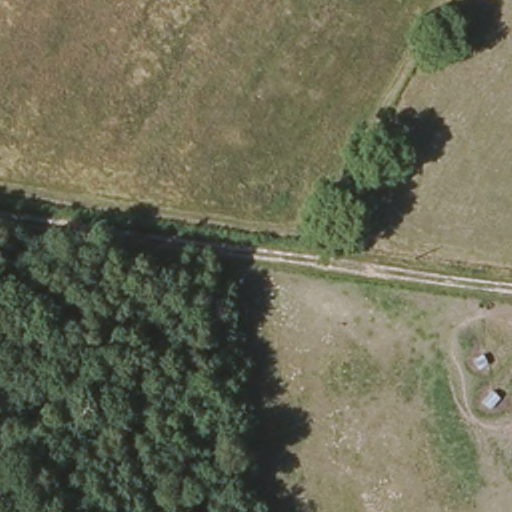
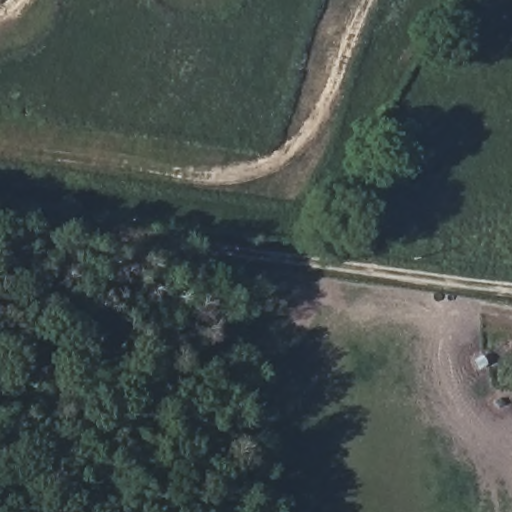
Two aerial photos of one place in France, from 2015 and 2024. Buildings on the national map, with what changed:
[]

